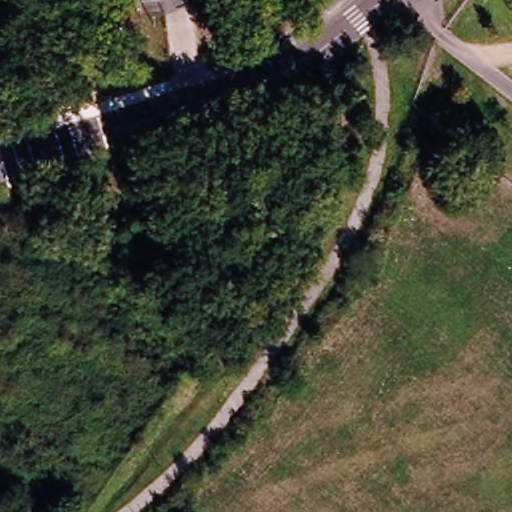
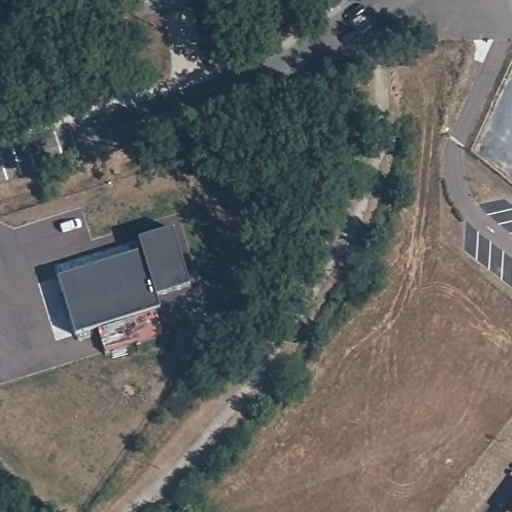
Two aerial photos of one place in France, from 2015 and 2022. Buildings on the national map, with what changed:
new [(142,250),(139,240),(173,230),(190,287),(157,296),(160,308),(76,333),(58,276),(142,250)]
new [(512,509),(512,512),(509,512),(512,509)]

